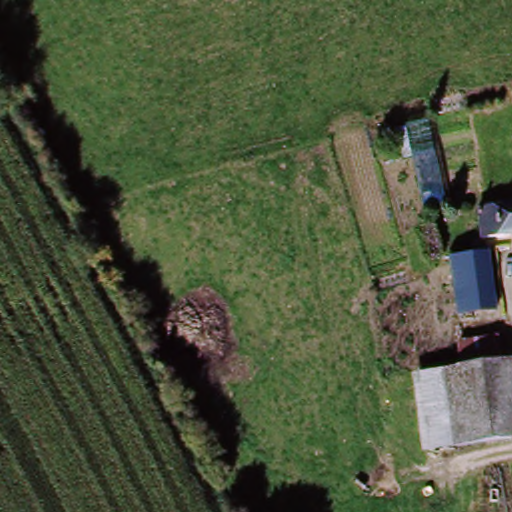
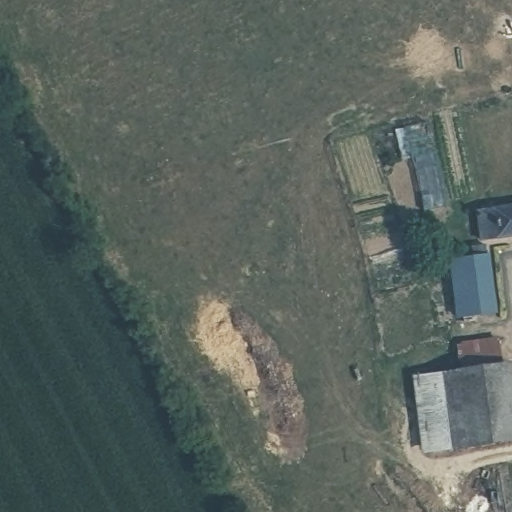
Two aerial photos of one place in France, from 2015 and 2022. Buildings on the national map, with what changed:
unchanged [(512,205),(512,236),(484,240),(484,209),(512,205)]
unchanged [(482,318),(465,320),(460,295),(451,298),(445,260),(472,256),(482,318)]
unchanged [(512,360),(512,441),(419,454),(412,373),(455,368),(455,341),(505,335),(512,360)]

